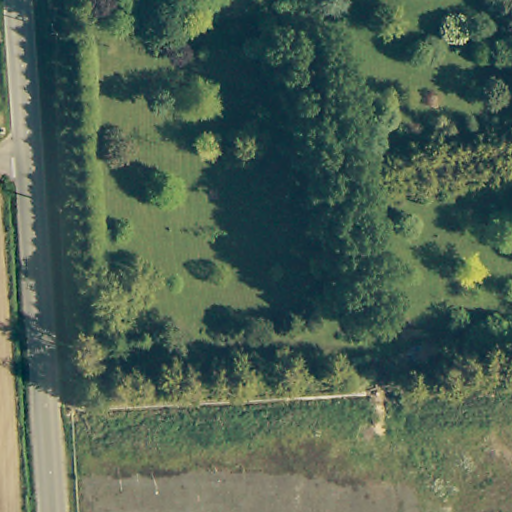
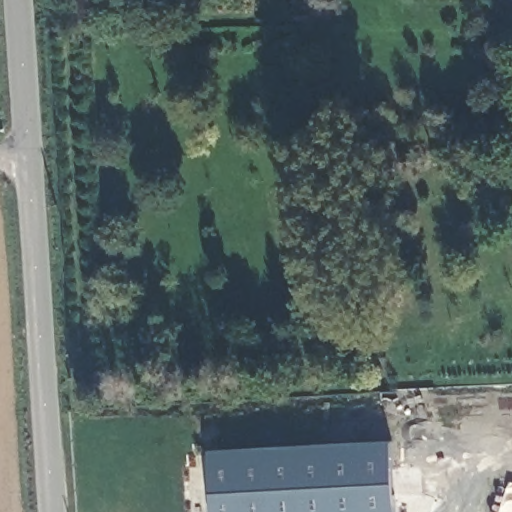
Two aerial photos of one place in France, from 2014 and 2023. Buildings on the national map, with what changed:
new [(214,512),(211,447),(392,439),(397,512),(214,512)]

